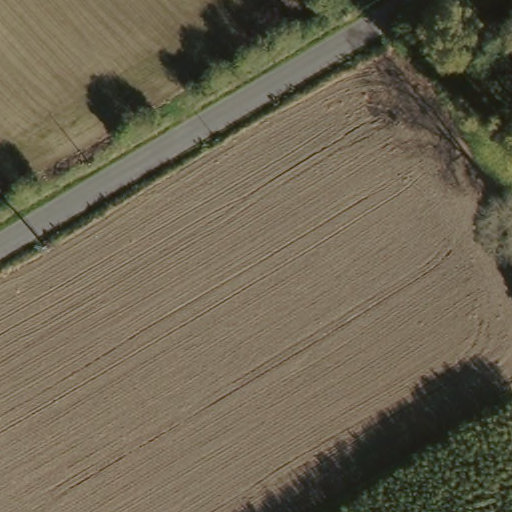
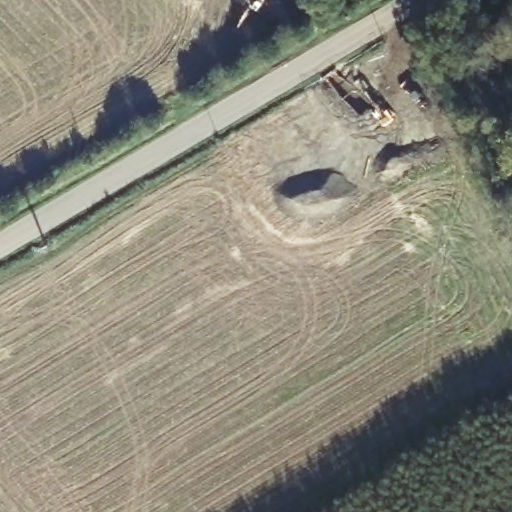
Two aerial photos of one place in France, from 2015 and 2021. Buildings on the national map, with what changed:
[]

